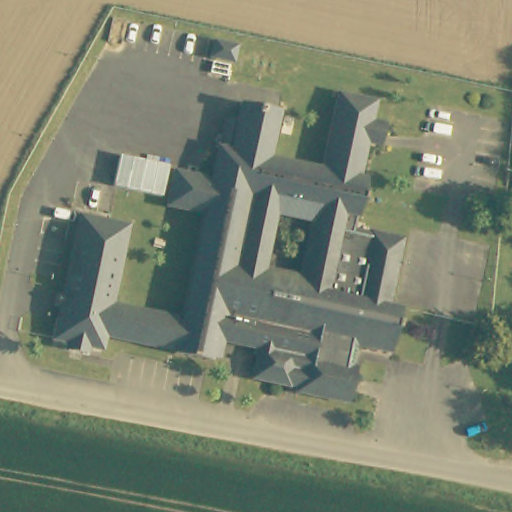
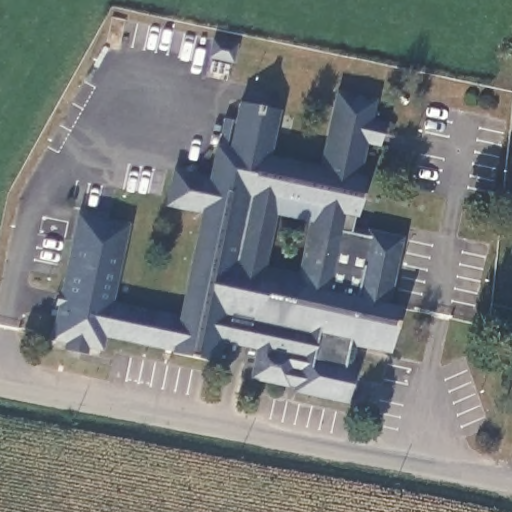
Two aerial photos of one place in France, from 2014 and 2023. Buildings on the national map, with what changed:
unchanged [(409,245),(395,306),(411,310),(398,360),(362,351),(359,364),(355,382),(349,405),(311,395),(314,380),(299,376),(295,393),(250,380),(257,351),(213,340),(208,361),(180,355),(170,352),(171,350),(101,332),(97,347),(46,334),(76,211),(126,222),(106,301),(178,318),(181,303),(203,212),(183,207),(166,202),(174,169),(183,171),(211,178),(217,153),(219,147),(224,148),(230,120),(244,124),(249,105),(287,114),(275,161),(330,174),(348,99),(382,107),(385,108),(368,182),(367,183),(375,185),(366,222),(363,222),(359,238),(378,242),(379,237),(409,245)]

